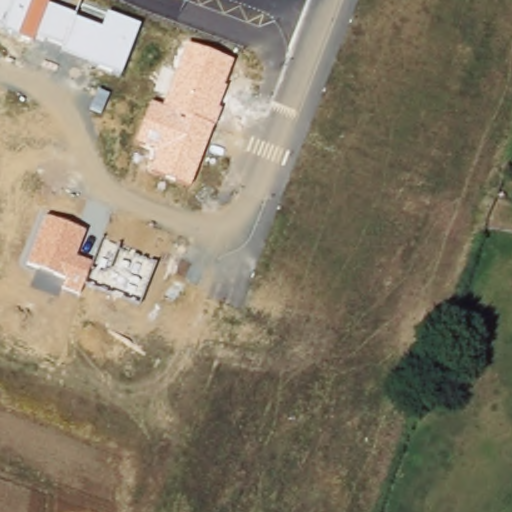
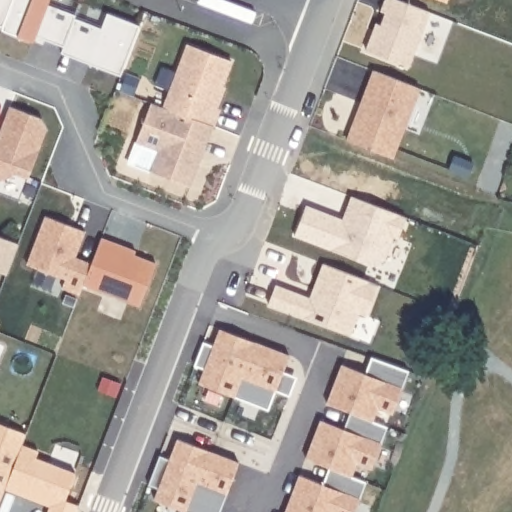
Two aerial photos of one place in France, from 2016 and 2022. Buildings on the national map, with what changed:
unchanged [(64,44),(45,37),(43,44),(1,27),(2,24),(0,23),(0,0),(49,0),(47,4),(76,14),(75,18),(101,29),(107,13),(140,26),(121,74),(62,51),(64,44)]
new [(367,49),(375,23),(380,24),(384,13),(380,11),(384,0),(400,0),(429,11),(410,65),(367,49)]
new [(443,0),(446,0),(446,1),(443,0)]
unchanged [(151,101),(163,105),(186,42),(233,61),(222,86),(226,88),(219,109),(220,110),(191,188),(151,172),(159,149),(136,143),(151,101)]
new [(374,70),(419,88),(392,158),(347,141),(374,70)]
new [(41,119),(46,129),(27,178),(14,173),(0,179),(0,134),(10,106),(41,119)]
unchanged [(61,288),(65,279),(26,264),(44,215),(84,232),(75,258),(91,264),(83,284),(80,293),(61,288)]
new [(6,274),(0,272),(0,237),(18,244),(6,274)]
unchanged [(91,264),(98,239),(157,262),(140,305),(83,284),(91,264)]
new [(283,372),(296,377),(289,396),(275,392),(269,411),(199,384),(204,369),(193,364),(202,342),(213,345),(220,329),(289,354),(283,372)]
new [(409,371),(393,414),(379,409),(374,420),(388,426),(372,469),(357,464),(352,478),(366,483),(355,512),(285,512),(298,476),(321,483),(328,466),(305,457),(320,420),(343,428),(350,411),(327,402),(341,364),(365,373),(372,357),(409,371)]
new [(4,489),(0,497),(0,423),(26,433),(22,444),(4,489)]
new [(219,512),(190,512),(154,499),(158,489),(149,484),(158,455),(169,459),(176,438),(239,462),(219,512)]
new [(49,506),(4,489),(22,444),(39,450),(36,458),(74,472),(66,500),(78,506),(75,512),(47,512),(49,506)]

